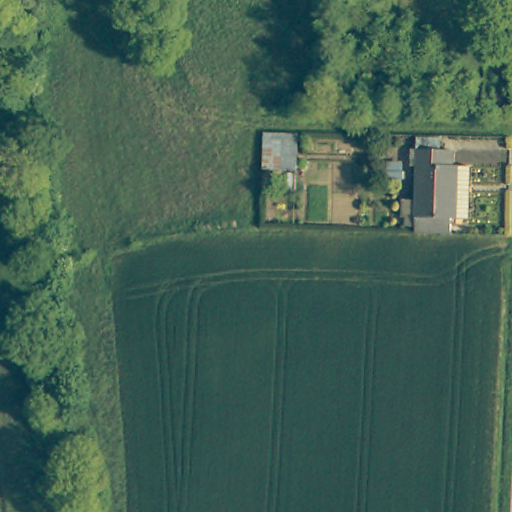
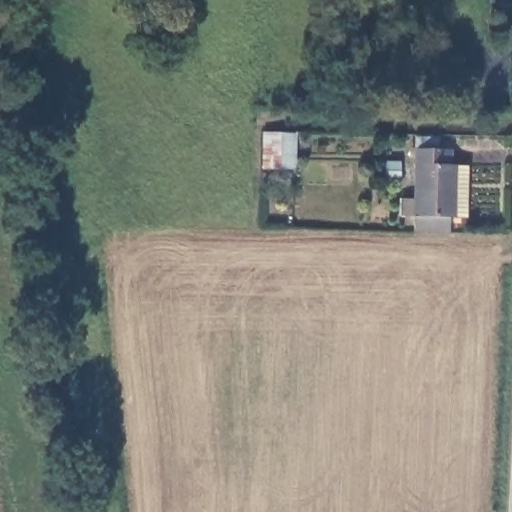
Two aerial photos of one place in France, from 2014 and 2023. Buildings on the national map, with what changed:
unchanged [(292,135),(290,171),(273,170),(275,135),(292,135)]
unchanged [(454,167),(462,167),(473,168),(470,215),(459,214),(456,214),(454,235),(414,235),(415,211),(418,211),(422,151),(455,154),(454,167)]

